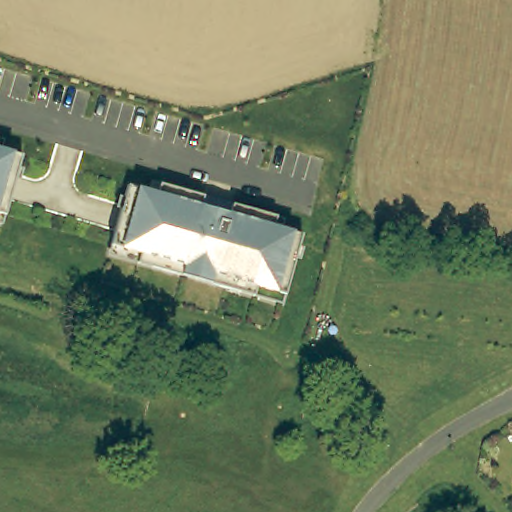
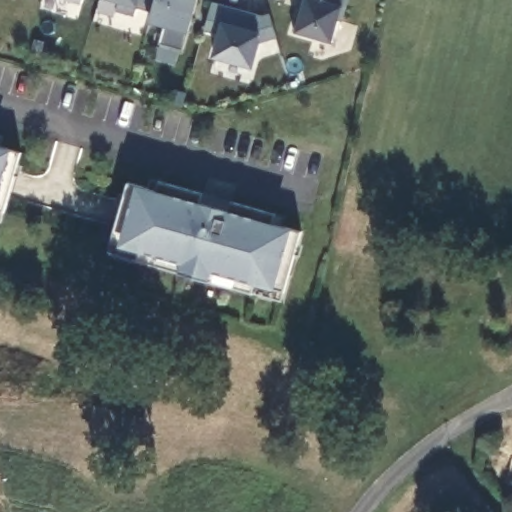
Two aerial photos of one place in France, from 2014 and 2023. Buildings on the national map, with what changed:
new [(84,7),(59,0),(86,0),(84,7)]
new [(101,0),(156,0),(149,24),(146,39),(94,24),(101,0)]
new [(187,34),(182,51),(159,46),(164,28),(149,24),(156,0),(196,0),(187,34)]
new [(343,22),(338,21),(332,43),(294,34),(304,0),(349,0),(343,22)]
new [(260,17),(269,15),(277,40),(259,45),(251,70),(211,60),(218,36),(203,31),(213,3),(260,17)]
unchanged [(5,151),(25,157),(8,217),(5,227),(0,225),(0,139),(7,141),(5,151)]
unchanged [(212,286),(184,278),(154,269),(111,257),(114,247),(131,187),(152,193),(154,183),(163,185),(206,198),(235,206),(279,218),(287,221),(284,230),(305,236),(288,297),(285,307),(242,294),(212,286)]

